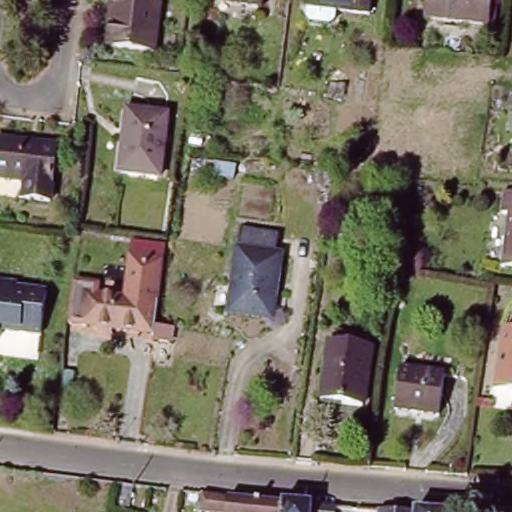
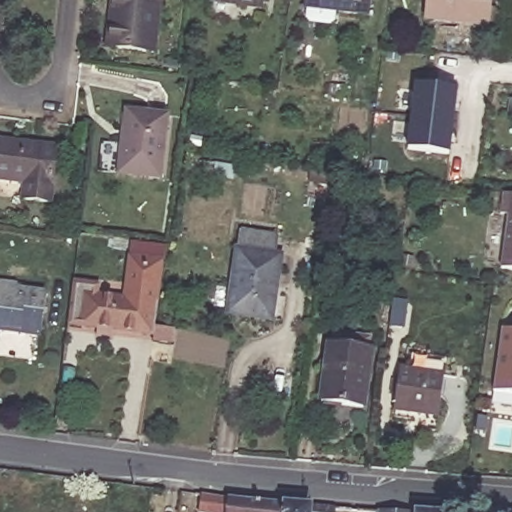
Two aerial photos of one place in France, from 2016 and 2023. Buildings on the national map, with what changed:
unchanged [(161,0),(153,53),(112,47),(117,10),(111,9),(112,0),(161,0)]
unchanged [(242,12),(242,6),(216,3),(216,0),(265,0),(263,14),(242,12)]
unchanged [(336,14),(335,25),(330,28),(308,26),(305,20),(307,10),(305,10),(306,0),(373,0),(370,19),(336,14)]
unchanged [(424,22),(427,0),(488,0),(484,29),(424,22)]
new [(413,86),(455,91),(448,153),(406,148),(413,86)]
unchanged [(168,122),(159,186),(118,179),(123,143),(126,144),(130,116),(168,122)]
unchanged [(48,205),(23,202),(25,185),(0,181),(0,143),(55,150),(48,205)]
unchanged [(512,275),(497,273),(505,218),(497,217),(501,196),(512,198),(512,275)]
unchanged [(236,234),(274,240),(272,258),(277,259),(271,299),(267,298),(263,322),(223,316),(236,234)]
unchanged [(158,268),(152,306),(122,301),(127,264),(158,268)]
unchanged [(13,290),(42,295),(37,338),(16,335),(17,332),(0,330),(0,285),(14,287),(13,290)]
unchanged [(122,301),(152,306),(147,340),(78,329),(68,327),(73,287),(81,288),(97,291),(97,297),(96,301),(122,304),(122,301)]
unchanged [(512,395),(492,392),(502,329),(512,331),(512,395)]
unchanged [(363,415),(323,410),(330,350),(333,350),(335,337),(372,341),(370,355),(363,415)]
unchanged [(438,416),(395,412),(398,371),(442,376),(438,416)]
unchanged [(201,496),(207,497),(244,501),(280,504),(280,512),(198,512),(201,496)]
unchanged [(280,504),(312,507),(332,509),(332,512),(280,512),(280,504)]

